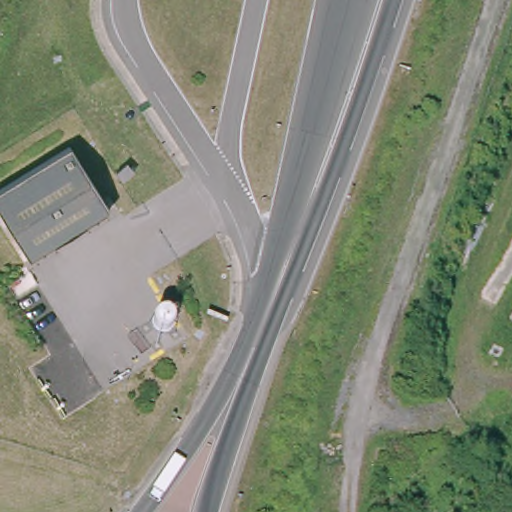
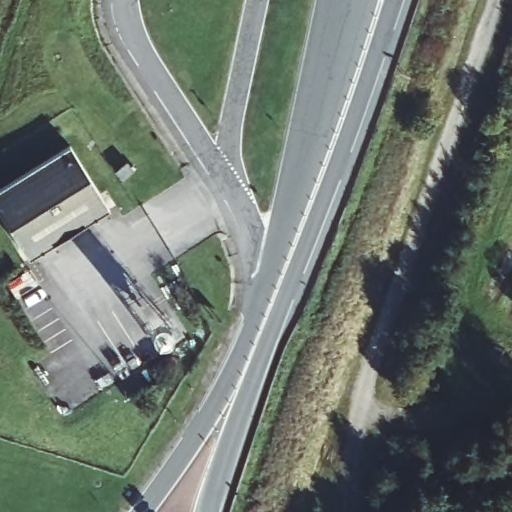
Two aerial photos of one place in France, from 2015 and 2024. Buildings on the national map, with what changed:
unchanged [(108,210),(27,258),(0,211),(0,186),(70,145),(108,210)]
unchanged [(130,168),(136,178),(123,185),(118,176),(130,168)]

